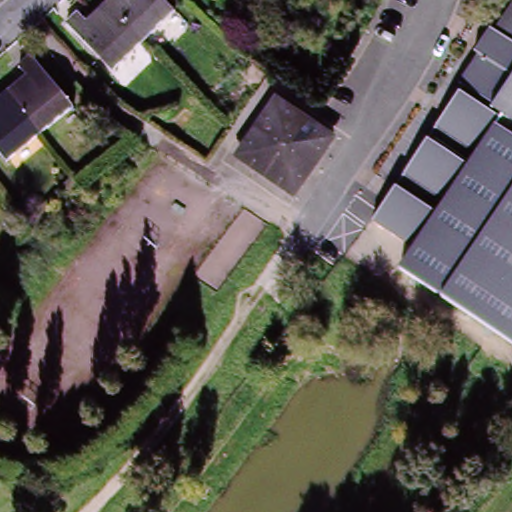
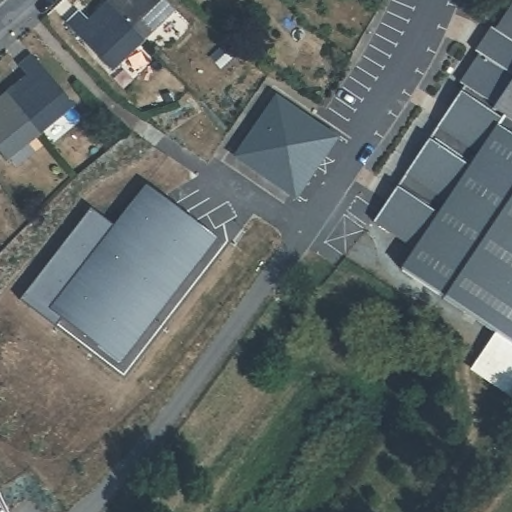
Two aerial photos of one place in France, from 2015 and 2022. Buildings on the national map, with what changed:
unchanged [(85,17),(104,0),(105,0),(143,40),(111,70),(63,20),(76,8),(85,17)]
unchanged [(143,40),(105,0),(165,0),(174,10),(143,40)]
unchanged [(389,281),(404,261),(364,231),(460,99),(461,94),(458,92),(479,63),(461,50),(481,22),(499,35),(512,17),(512,371),(389,281)]
unchanged [(25,77),(17,67),(32,56),(73,108),(38,135),(6,92),(25,77)]
unchanged [(0,96),(6,92),(38,135),(3,161),(0,156),(0,96)]
unchanged [(293,200),(234,157),(275,99),(333,139),(293,200)]
new [(217,237),(117,363),(59,317),(54,327),(19,299),(89,207),(114,224),(146,182),(217,237)]

